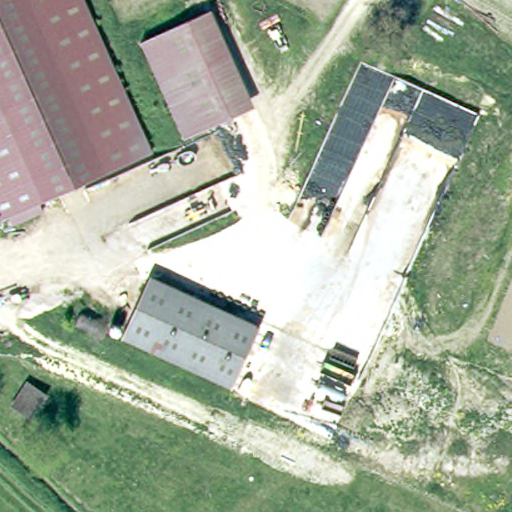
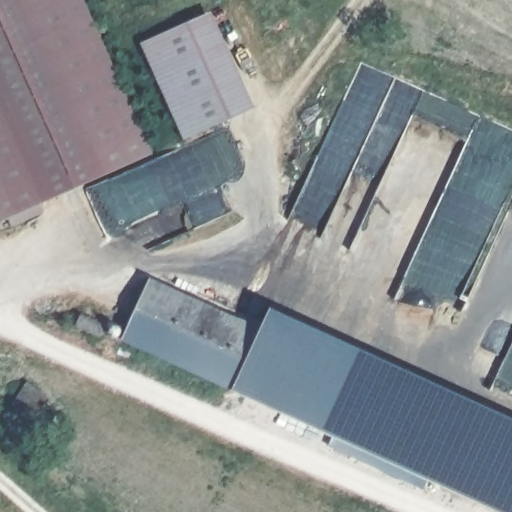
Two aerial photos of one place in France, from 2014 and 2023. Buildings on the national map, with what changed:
unchanged [(0,6),(0,0),(13,0),(0,6)]
unchanged [(13,0),(81,0),(150,155),(0,223),(0,6),(13,0)]
unchanged [(231,114),(187,132),(147,35),(192,17),(231,114)]
unchanged [(264,328),(235,389),(129,338),(157,277),(264,328)]
new [(512,419),(512,444),(270,333),(278,312),(512,419)]
new [(512,444),(512,512),(502,512),(243,393),(270,333),(512,444)]

